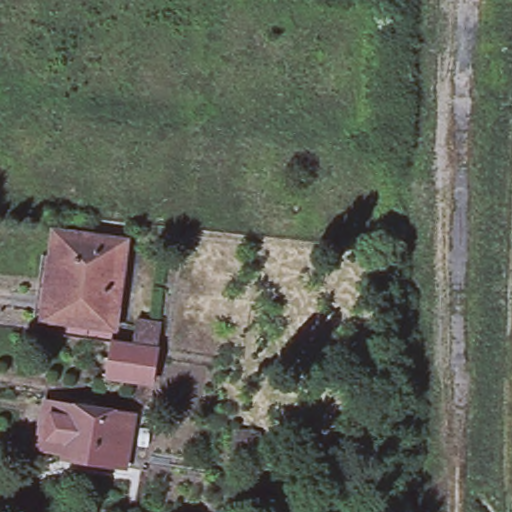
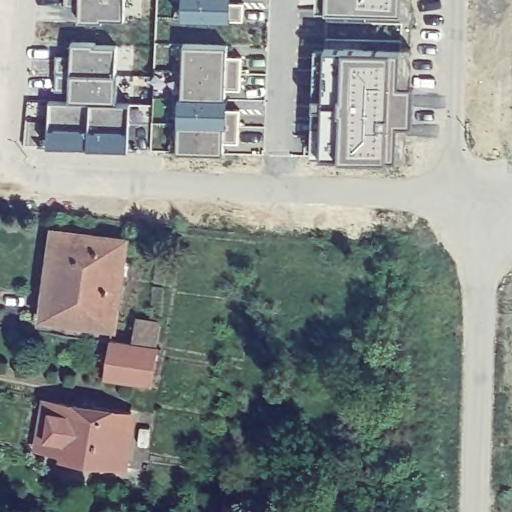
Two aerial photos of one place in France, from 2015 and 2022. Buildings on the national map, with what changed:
new [(125,0),(124,21),(102,21),(103,23),(78,23),(79,9),(64,9),(64,0),(125,0)]
new [(230,0),(229,3),(244,3),(243,21),(182,18),(183,0),(230,0)]
new [(324,18),(325,0),(398,0),(397,18),(324,18)]
new [(56,56),(71,56),(71,43),(95,44),(95,46),(117,47),(116,76),(56,74),(55,74),(56,56)]
new [(181,44),(228,45),(227,56),(242,57),(241,90),(226,89),(226,109),(240,110),(239,119),(178,112),(181,44)]
new [(325,48),(381,50),(379,136),(322,129),(325,48)]
new [(322,129),(379,136),(381,50),(402,51),(399,105),(409,105),(408,126),(399,126),(398,160),(321,158),(322,129)]
new [(56,74),(116,76),(118,76),(116,104),(108,104),(68,99),(69,92),(55,91),(56,74)]
new [(49,101),(89,103),(88,149),(53,148),(47,147),(48,123),(49,101)]
new [(122,150),(88,149),(89,103),(108,104),(116,104),(130,106),(129,125),(128,150),(122,150)]
new [(178,112),(239,119),(239,144),(224,143),(224,154),(177,152),(178,112)]
unchanged [(50,224),(132,233),(118,329),(37,319),(50,224)]
unchanged [(175,325),(156,389),(100,378),(103,341),(137,345),(145,319),(175,325)]
unchanged [(127,468),(35,447),(47,394),(138,412),(127,468)]

